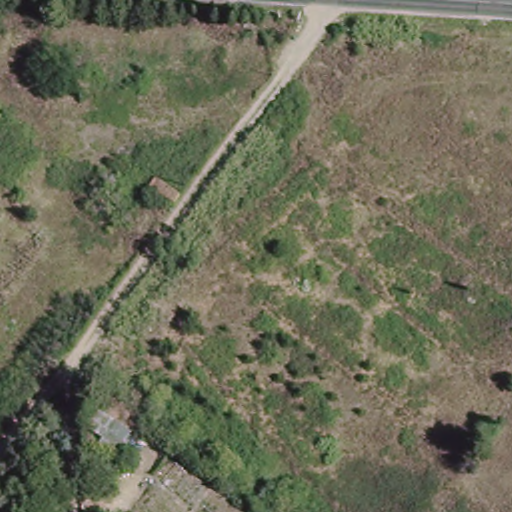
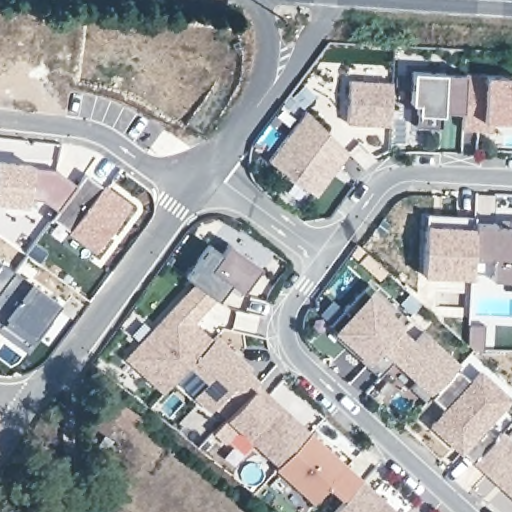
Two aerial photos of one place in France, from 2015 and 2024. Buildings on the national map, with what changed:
new [(411,66),(464,69),(462,106),(442,105),(441,123),(416,122),(417,99),(410,98),(411,66)]
new [(478,125),(462,124),(462,106),(464,69),(512,70),(512,126),(478,125)]
new [(348,79),(391,80),(389,124),(346,121),(348,79)]
new [(306,109),(348,150),(316,194),(269,160),(306,109)]
new [(54,170),(76,184),(56,212),(40,202),(28,198),(26,208),(0,204),(0,158),(21,161),(54,170)]
new [(53,220),(86,175),(103,187),(104,184),(133,204),(96,252),(53,220)]
new [(425,212),(472,214),(472,222),(472,226),(469,272),(471,277),(423,275),(425,224),(425,212)]
new [(472,222),(493,222),(493,225),(507,225),(507,218),(512,218),(512,278),(489,278),(489,273),(469,272),(472,222)]
new [(164,385),(135,364),(183,297),(193,282),(185,277),(209,245),(221,254),(228,244),(260,267),(243,293),(229,283),(218,300),(214,297),(204,311),(193,326),(188,320),(181,327),(195,339),(201,332),(208,338),(176,372),(164,385)]
new [(0,292),(0,261),(14,271),(0,292)]
new [(28,353),(0,332),(0,292),(14,271),(58,302),(34,336),(38,339),(28,353)]
new [(408,318),(399,329),(416,341),(424,332),(461,364),(458,366),(433,395),(427,402),(412,389),(417,383),(394,361),(380,378),(331,336),(336,331),(329,325),(368,284),(408,318)]
new [(411,312),(399,302),(408,292),(419,302),(411,312)]
new [(195,339),(181,327),(188,320),(201,332),(195,339)]
new [(278,459),(276,462),(247,438),(239,432),(228,445),(214,432),(226,418),(216,409),(213,412),(173,375),(176,372),(208,338),(215,334),(251,367),(247,371),(259,382),(256,385),(307,430),(278,459)]
new [(458,366),(472,379),(480,369),(508,393),(499,402),(504,405),(487,423),(499,434),(475,461),(462,449),(466,445),(458,438),(450,439),(433,423),(446,408),(433,395),(458,366)]
new [(309,427),(362,475),(345,494),(331,482),(316,499),(276,462),(278,459),(309,427)]
new [(512,442),(512,499),(473,463),(475,461),(499,434),(501,432),(512,442)]
new [(345,494),(362,475),(373,485),(402,511),(401,512),(329,512),(345,494)]

